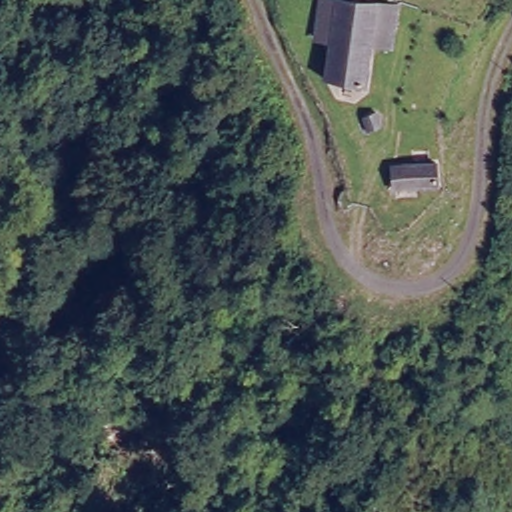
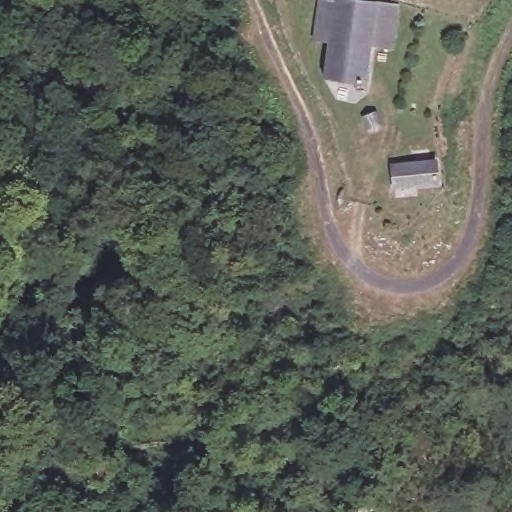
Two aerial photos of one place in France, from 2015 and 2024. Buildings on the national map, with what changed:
unchanged [(363,92),(321,87),(328,45),(309,44),(315,2),(335,5),(339,6),(339,0),(364,0),(364,9),(395,13),(388,55),(369,54),(363,92)]
unchanged [(389,123),(374,128),(367,115),(381,109),(389,123)]
unchanged [(441,186),(403,190),(399,169),(437,166),(441,186)]

